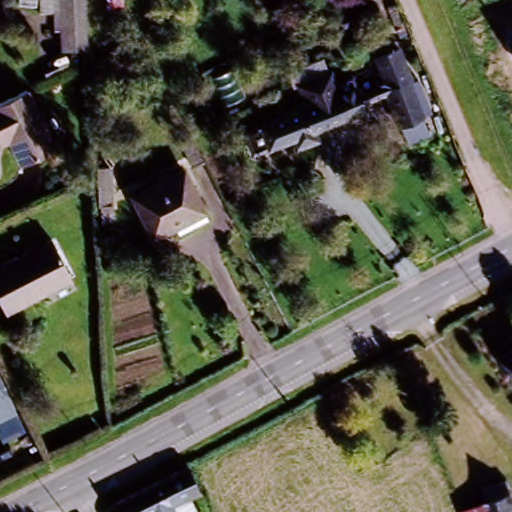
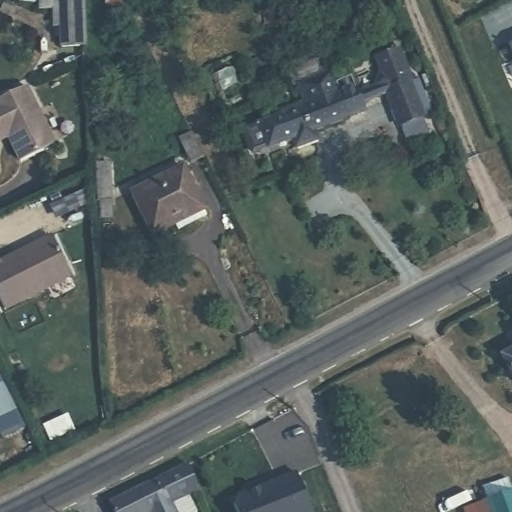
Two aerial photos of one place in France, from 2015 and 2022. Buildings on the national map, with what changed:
unchanged [(55,0),(82,0),(83,48),(55,50),(55,0)]
unchanged [(299,136),(264,151),(254,126),(313,103),(304,81),(337,68),(346,90),(356,114),(323,126),(328,138),(303,148),(299,136)]
unchanged [(428,133),(406,143),(384,92),(406,83),(428,133)]
unchanged [(1,130),(0,131),(0,96),(23,86),(49,145),(14,161),(1,130)]
unchanged [(193,161),(183,141),(194,134),(206,156),(193,161)]
unchanged [(93,166),(110,165),(113,220),(98,220),(93,166)]
unchanged [(204,209),(153,236),(132,194),(183,168),(204,209)]
unchanged [(68,277),(0,309),(0,259),(49,237),(68,277)]
unchanged [(499,355),(512,348),(512,377),(499,355)]
unchanged [(0,435),(0,373),(23,425),(0,435)]
unchanged [(106,503),(149,481),(159,476),(178,467),(191,495),(169,504),(162,507),(164,512),(111,512),(106,503)]
new [(234,495),(296,470),(313,512),(311,512),(235,512),(231,501),(234,495)]
unchanged [(464,507),(488,499),(483,486),(507,478),(512,491),(512,512),(466,512),(464,507)]

